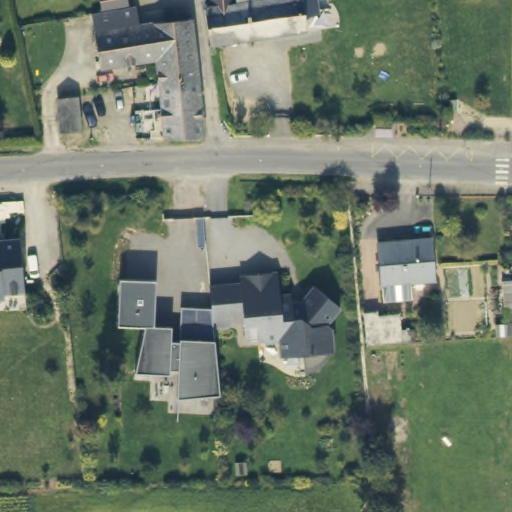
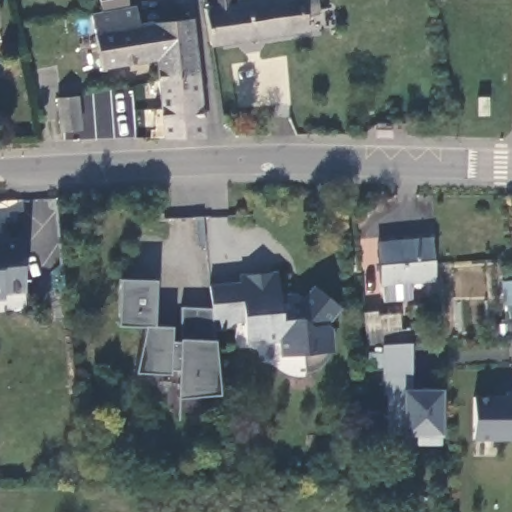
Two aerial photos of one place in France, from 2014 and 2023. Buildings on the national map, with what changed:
unchanged [(323,25),(211,43),(204,5),(209,4),(208,0),(319,0),(323,25)]
unchanged [(105,69),(95,14),(103,12),(138,6),(141,26),(156,24),(161,59),(159,59),(105,69)]
unchanged [(188,18),(193,17),(200,77),(200,78),(161,81),(159,59),(161,59),(156,24),(188,18)]
unchanged [(206,136),(166,138),(161,81),(200,78),(206,136)]
unchanged [(81,98),(85,131),(71,133),(66,133),(62,100),(81,98)]
unchanged [(10,293),(10,299),(0,299),(0,246),(4,246),(4,239),(26,239),(29,292),(10,293)]
unchanged [(433,241),(436,284),(381,289),(377,246),(433,241)]
unchanged [(304,357),(282,359),(281,344),(265,344),(262,340),(246,340),(245,323),(235,323),(231,328),(214,329),(212,310),(210,288),(242,286),(241,277),(279,275),(280,298),(292,297),(292,308),(300,307),(315,289),(341,311),(327,328),(332,332),(333,355),(330,355),(329,360),(323,367),(317,373),(310,376),(305,376),(304,357)]
unchanged [(121,280),(157,281),(158,327),(145,327),(120,327),(121,280)]
unchanged [(177,400),(177,370),(169,371),(169,375),(136,374),(145,327),(171,328),(172,343),(180,342),(181,309),(212,310),(214,329),(220,397),(177,400)]
unchanged [(383,340),(368,340),(366,311),(382,310),(382,315),(405,314),(406,331),(416,331),(416,341),(383,344),(383,340)]
new [(415,388),(443,389),(443,435),(441,446),(416,445),(419,435),(403,434),(387,435),(387,395),(383,395),(382,368),(368,369),(368,352),(382,351),(382,345),(411,344),(415,388)]
demolished [(369,354),(397,352),(399,382),(372,383),(369,354)]
new [(473,440),(474,395),(506,395),(506,390),(512,390),(512,440),(473,440)]

